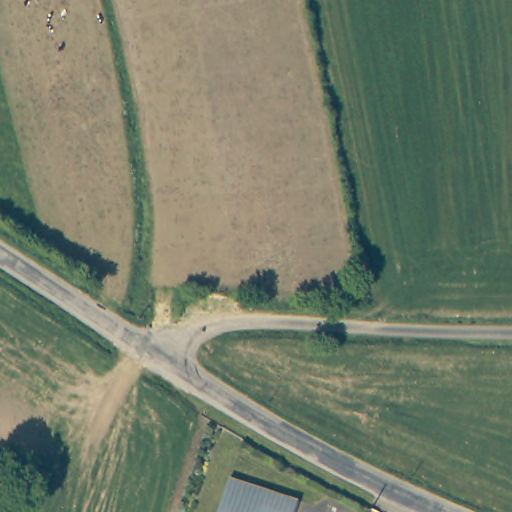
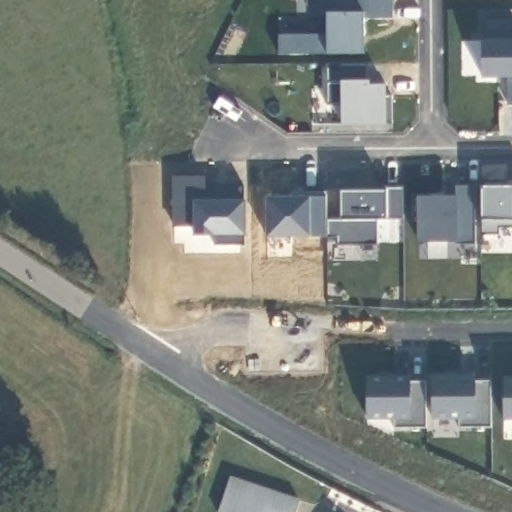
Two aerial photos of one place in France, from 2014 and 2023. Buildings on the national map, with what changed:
new [(328,36),(328,16),(318,16),(318,0),(393,0),(393,21),(364,21),(364,56),(278,56),(278,37),(328,36)]
new [(485,43),(485,22),(512,22),(512,106),(508,106),(508,78),(481,79),(481,42),(485,43)]
new [(368,65),(368,88),(385,88),(385,97),(392,96),(392,126),(342,126),(342,107),(327,108),(326,65),(368,65)]
new [(204,179),(205,196),(217,196),(217,190),(244,189),(245,248),(214,248),(214,237),(194,237),(194,229),(174,229),(173,180),(204,179)]
new [(512,229),(500,229),(499,236),(481,237),(480,182),(507,182),(512,182),(512,229)]
new [(412,196),(430,196),(430,200),(445,199),(445,204),(455,204),(455,187),(475,187),(476,247),(456,247),(455,243),(419,244),(418,218),(412,218),(412,196)]
new [(327,221),(340,221),(340,193),(365,192),(365,188),(387,188),(387,222),(377,222),(377,247),(337,247),(337,238),(327,238),(327,221)]
new [(290,199),(290,194),(327,193),(327,221),(327,238),(267,239),(266,199),(290,199)]
new [(475,379),(476,383),(492,383),(492,430),(459,430),(459,420),(432,420),(432,379),(475,379)]
new [(512,422),(504,422),(504,379),(512,379),(512,422)]
new [(411,380),(411,383),(427,383),(427,430),(394,430),(394,420),(367,421),(367,380),(411,380)]
unchanged [(293,502),(290,512),(217,512),(227,481),(293,502)]

